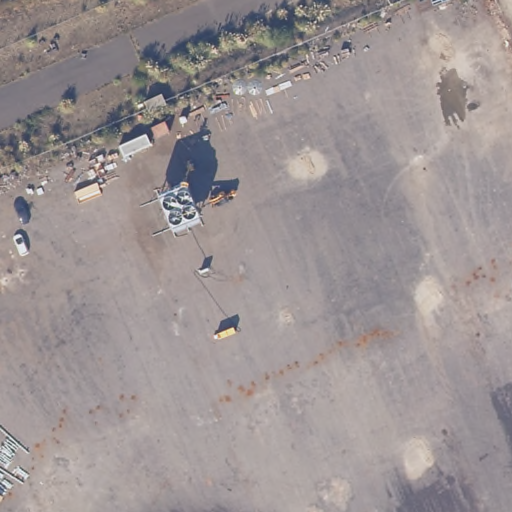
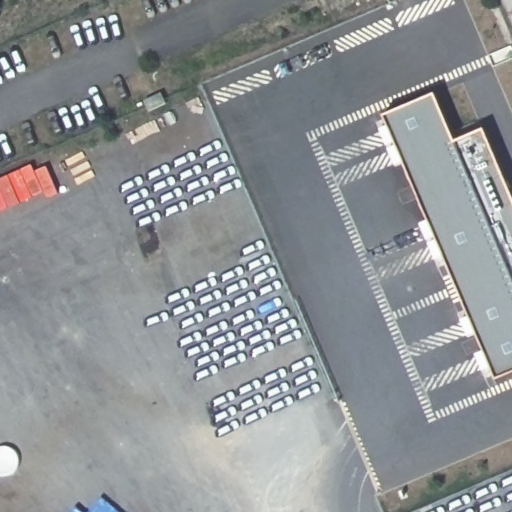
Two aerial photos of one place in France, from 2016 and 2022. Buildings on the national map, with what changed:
new [(458,140),(486,128),(512,189),(512,372),(498,378),(386,114),(438,92),(458,140)]

